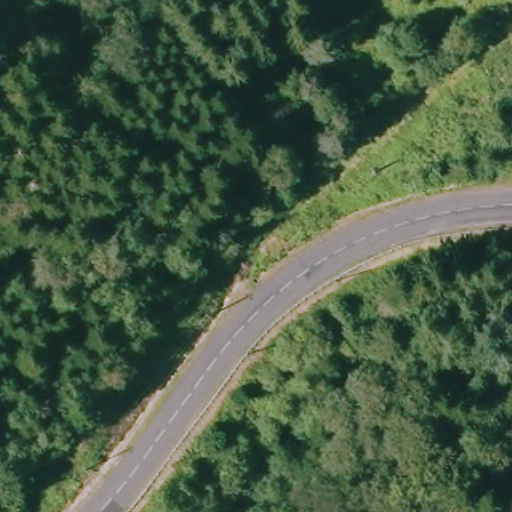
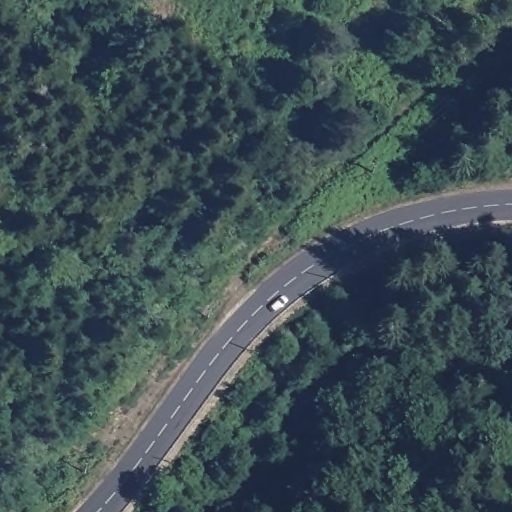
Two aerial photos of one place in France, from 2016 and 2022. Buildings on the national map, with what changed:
unchanged [(372,192),(374,198),(367,202),(364,195),(372,192)]

